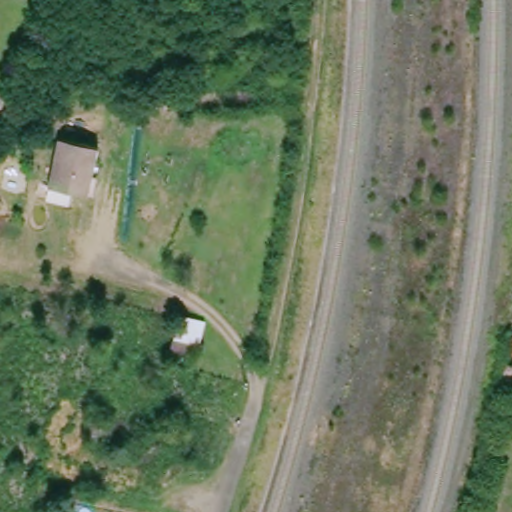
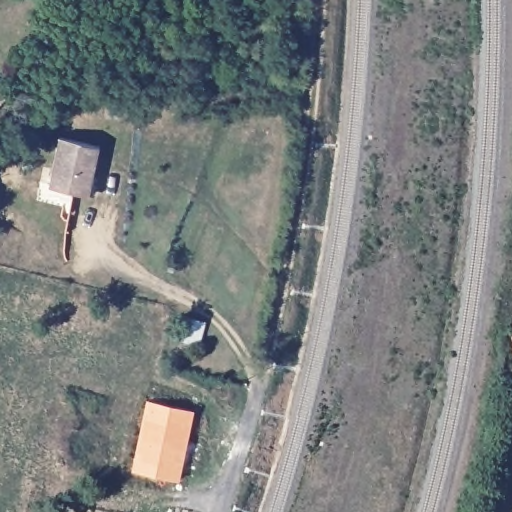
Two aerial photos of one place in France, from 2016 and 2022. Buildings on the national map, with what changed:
unchanged [(98,152),(88,199),(50,188),(57,152),(60,142),(85,149),(98,152)]
new [(129,473),(146,397),(190,412),(180,485),(129,473)]

